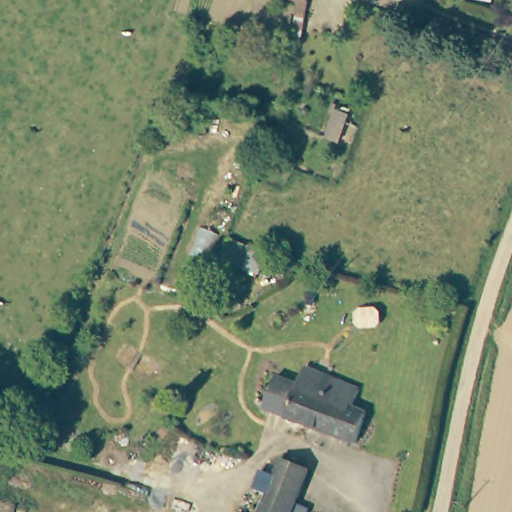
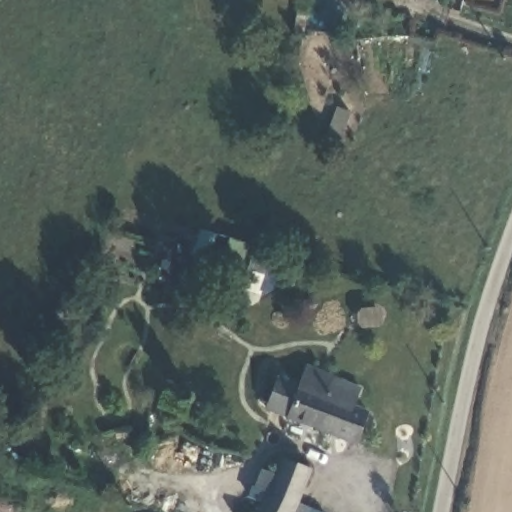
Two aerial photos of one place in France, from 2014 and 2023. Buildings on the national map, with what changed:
unchanged [(288,35),(294,0),(305,0),(299,37),(288,35)]
unchanged [(339,142),(322,138),(336,107),(350,116),(339,142)]
unchanged [(352,437),(284,411),(284,410),(262,402),(274,371),(295,379),(302,362),(357,383),(350,401),(364,406),(352,437)]
unchanged [(257,512),(281,457),(306,468),(287,512),(257,512)]

